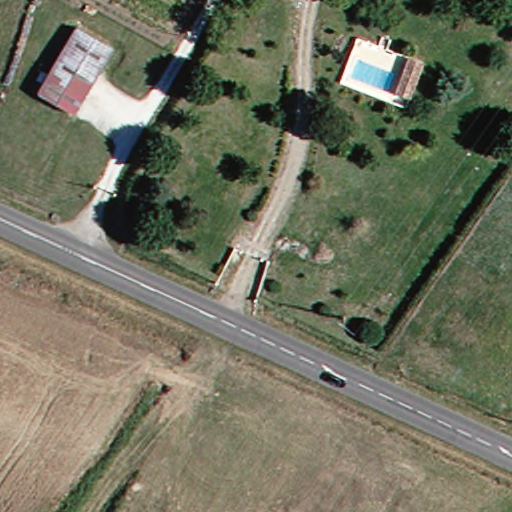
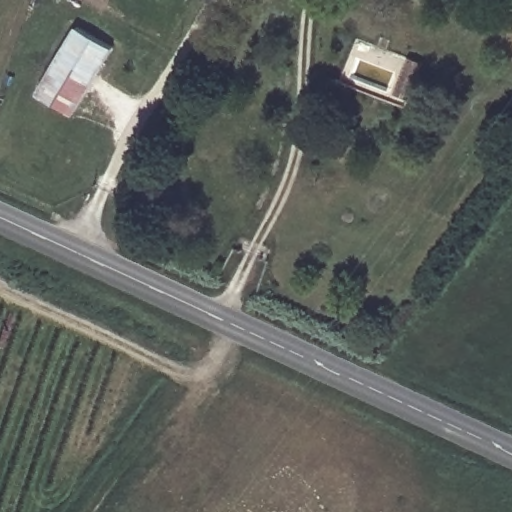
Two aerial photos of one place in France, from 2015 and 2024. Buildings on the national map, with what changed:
unchanged [(81,112),(45,91),(80,26),(117,45),(81,112)]
unchanged [(392,89),(407,54),(421,59),(406,95),(392,89)]

